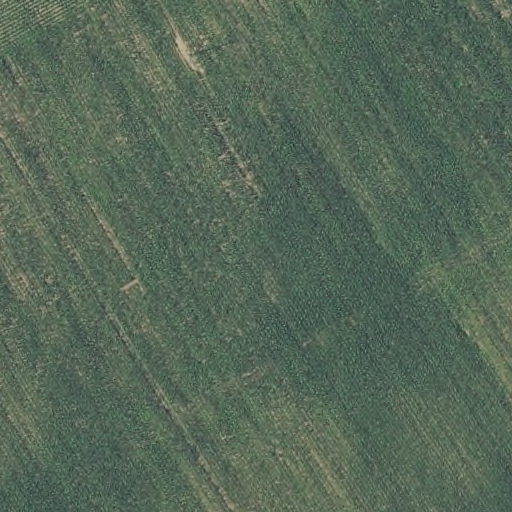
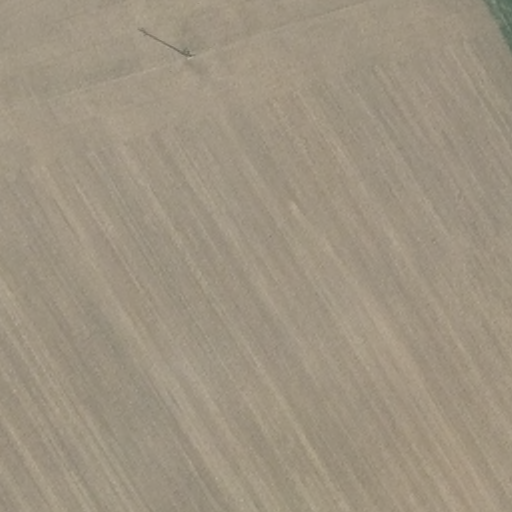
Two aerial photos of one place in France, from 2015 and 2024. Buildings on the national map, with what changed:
[]

